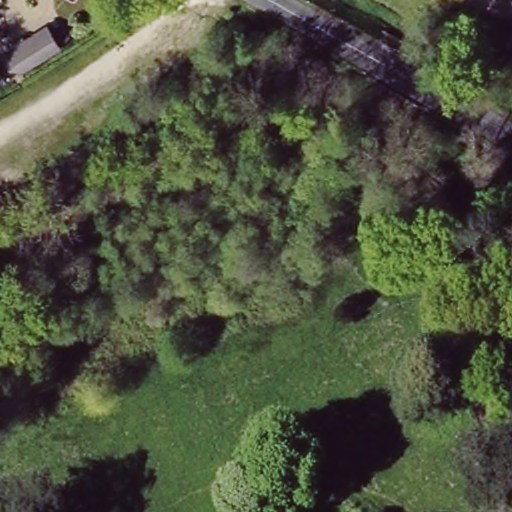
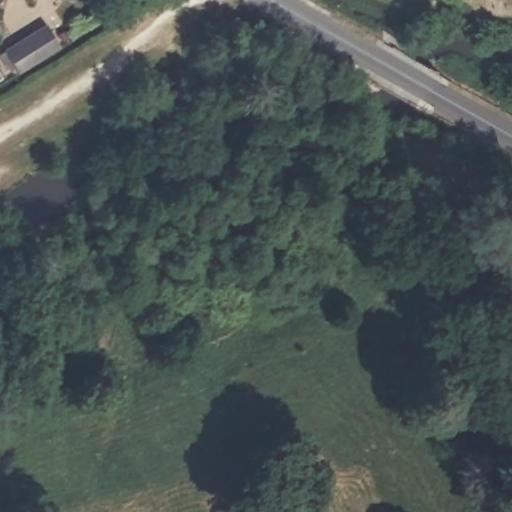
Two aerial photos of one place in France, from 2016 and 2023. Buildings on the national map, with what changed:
unchanged [(20,71),(5,47),(48,22),(61,45),(20,71)]

